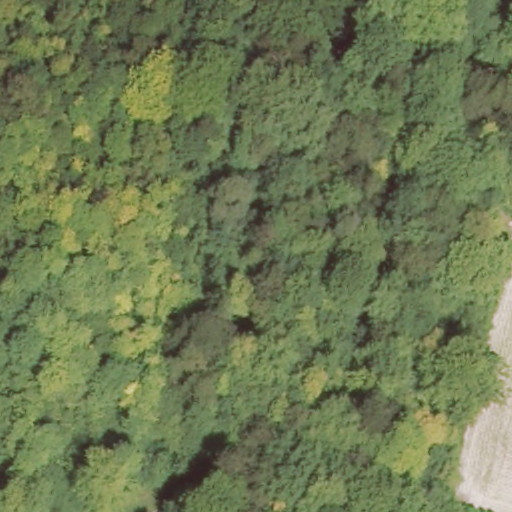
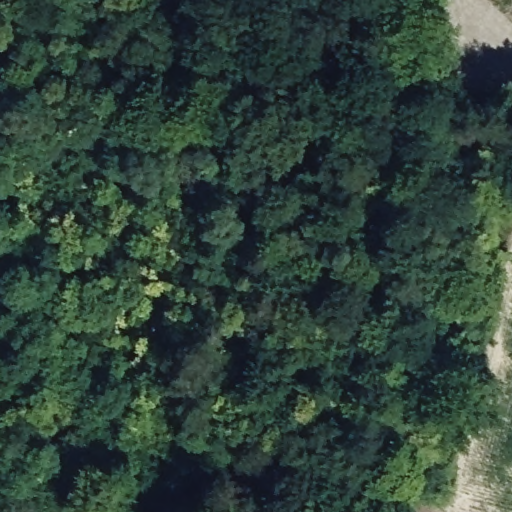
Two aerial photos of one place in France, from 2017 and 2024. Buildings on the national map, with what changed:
unchanged [(341,29),(345,0),(385,0),(381,40),(341,29)]

